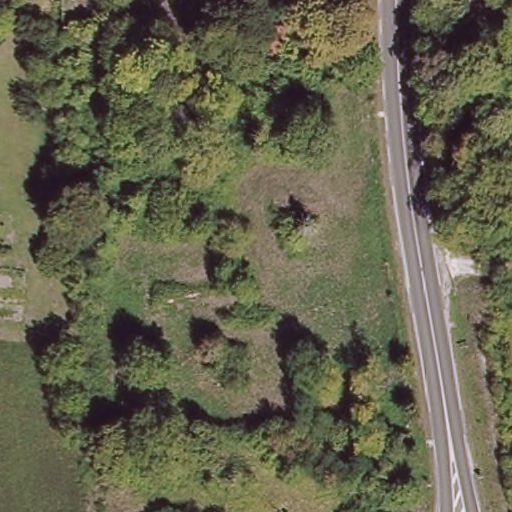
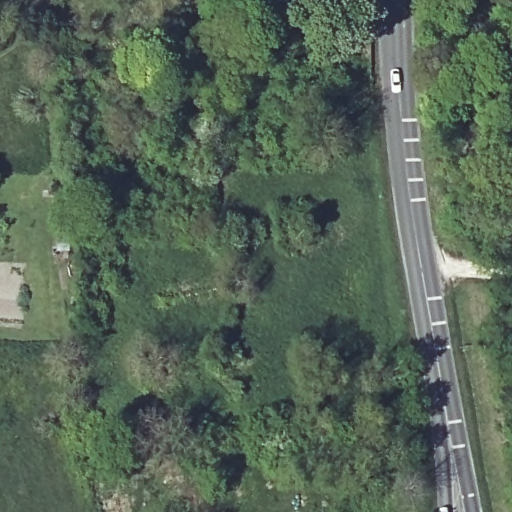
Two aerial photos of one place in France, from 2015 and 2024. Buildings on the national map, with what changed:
unchanged [(271,26),(286,27),(285,57),(270,57),(271,26)]

